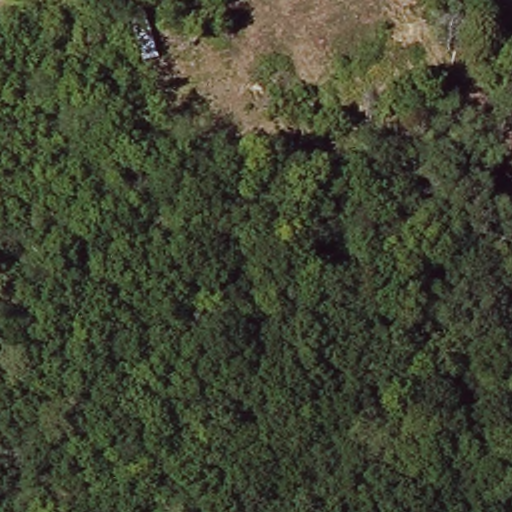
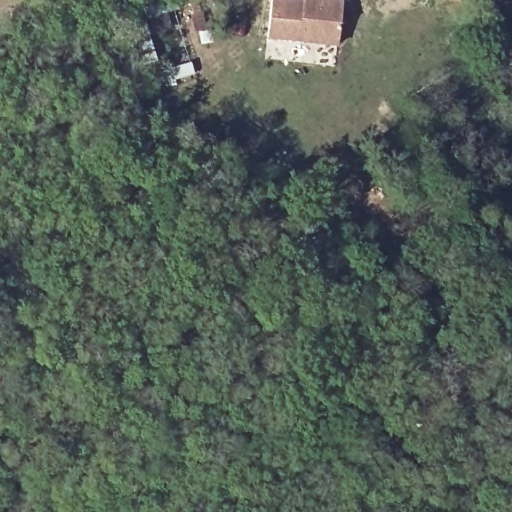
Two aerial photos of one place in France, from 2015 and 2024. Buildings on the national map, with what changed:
new [(294,0),(302,1),(303,0),(334,0),(342,1),(337,44),(265,37),(268,0),(294,0)]

